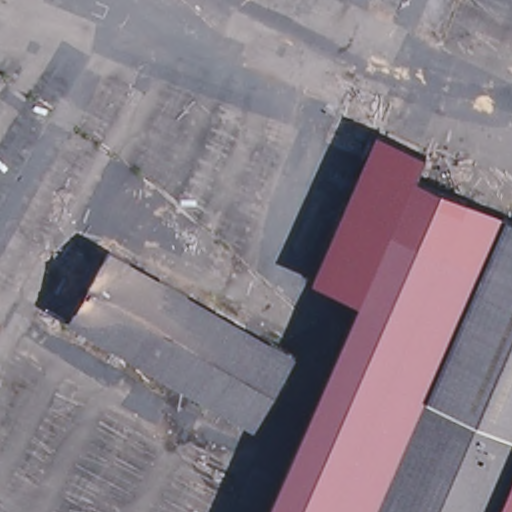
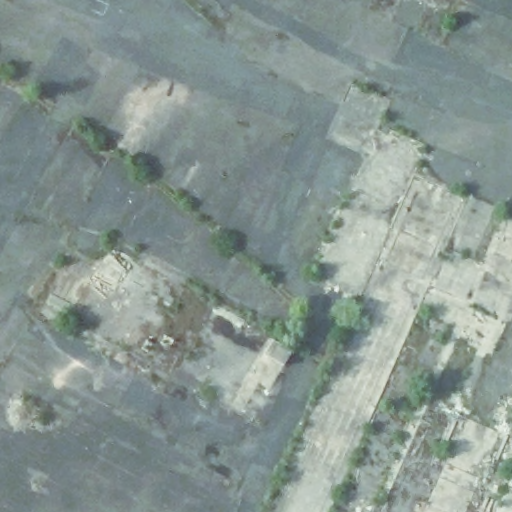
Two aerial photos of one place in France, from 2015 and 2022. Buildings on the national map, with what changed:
demolished [(313,277),(377,132),(422,154),(414,172),(512,215),(512,512),(265,512),(357,300),(313,277)]
demolished [(110,245),(211,302),(297,350),(255,425),(69,320),(82,295),(69,288),(77,273),(90,280),(110,245)]

